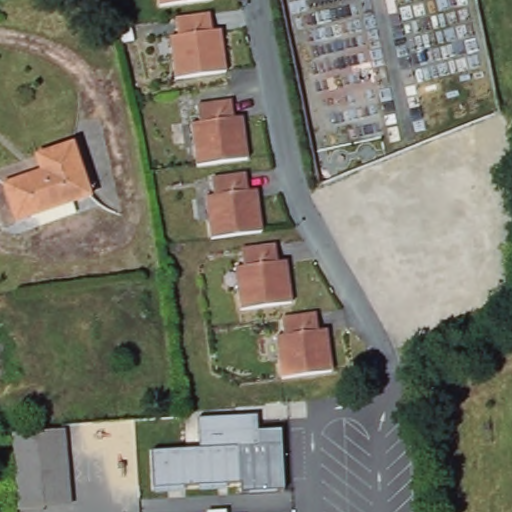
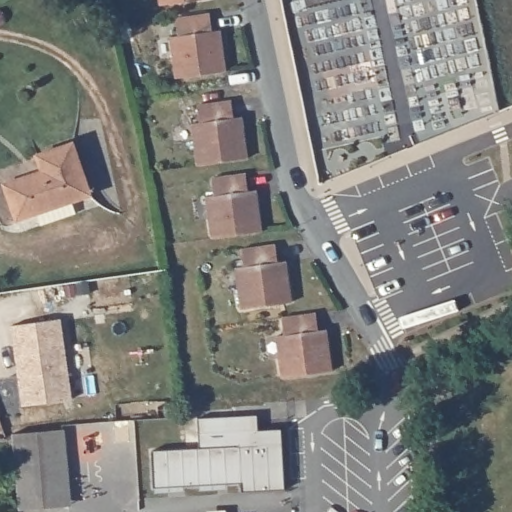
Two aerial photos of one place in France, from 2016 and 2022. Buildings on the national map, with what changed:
unchanged [(164,4),(163,0),(191,0),(164,4)]
unchanged [(216,31),(225,30),(229,72),(178,81),(172,37),(181,35),(177,19),(212,13),(216,31)]
unchanged [(251,112),(252,118),(257,153),(207,160),(201,119),(209,117),(206,101),(240,96),(243,113),(251,112)]
unchanged [(42,152),(77,141),(94,191),(22,216),(9,181),(48,168),(42,152)]
unchanged [(211,197),(219,195),(216,178),(251,173),(253,191),(261,189),(262,196),(267,231),(217,237),(211,197)]
unchanged [(246,308),(240,267),(248,266),(246,249),(280,244),(282,261),(290,260),(291,267),(296,302),(246,308)]
unchanged [(280,336),(288,335),(286,317),(320,312),(322,330),(330,329),(331,336),(336,370),(286,377),(280,336)]
new [(61,320),(72,401),(22,407),(11,327),(61,320)]
unchanged [(152,451),(199,447),(197,419),(256,416),(258,446),(238,447),(241,483),(153,488),(152,451)]
new [(241,490),(241,483),(238,447),(258,446),(257,433),(279,431),(283,487),(241,490)]
unchanged [(68,433),(72,508),(20,510),(18,436),(68,433)]

